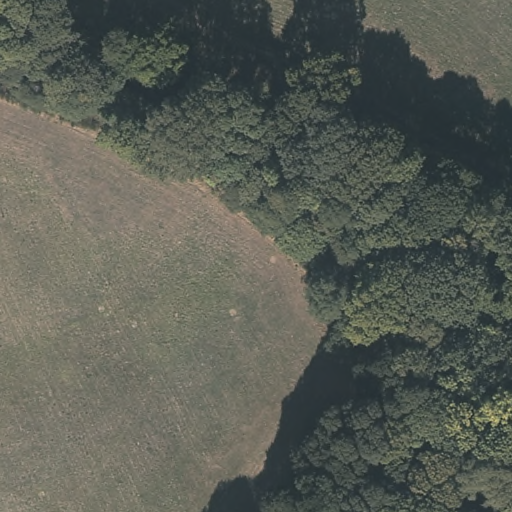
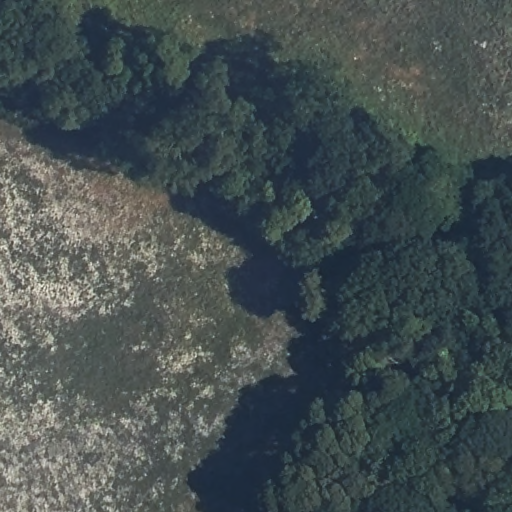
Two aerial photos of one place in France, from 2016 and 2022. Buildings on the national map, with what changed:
[]

